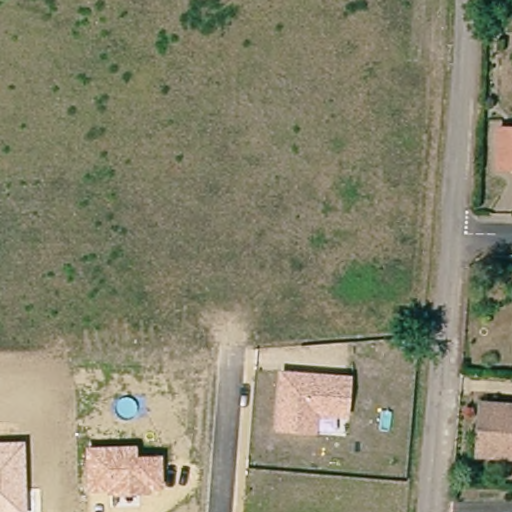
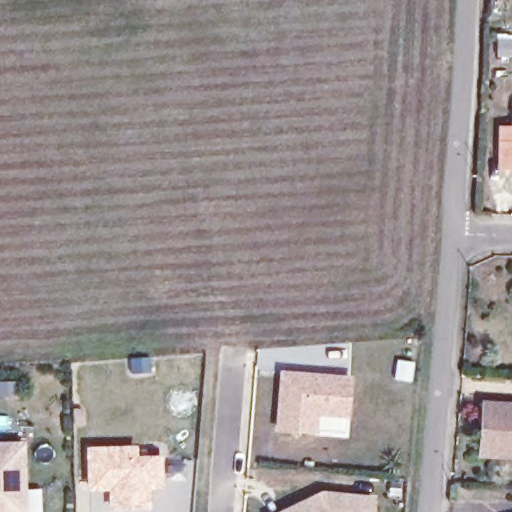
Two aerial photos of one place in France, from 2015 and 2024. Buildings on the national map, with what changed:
unchanged [(512,129),(512,170),(504,170),(505,129),(512,129)]
unchanged [(273,431),(278,370),(352,377),(349,418),(318,417),(317,436),(273,431)]
unchanged [(512,402),(512,454),(489,451),(495,400),(512,402)]
unchanged [(25,442),(26,512),(0,512),(0,443),(25,442)]
unchanged [(86,492),(84,447),(137,446),(137,456),(162,456),(163,490),(86,492)]
new [(331,488),(382,493),(380,512),(277,512),(331,488)]

